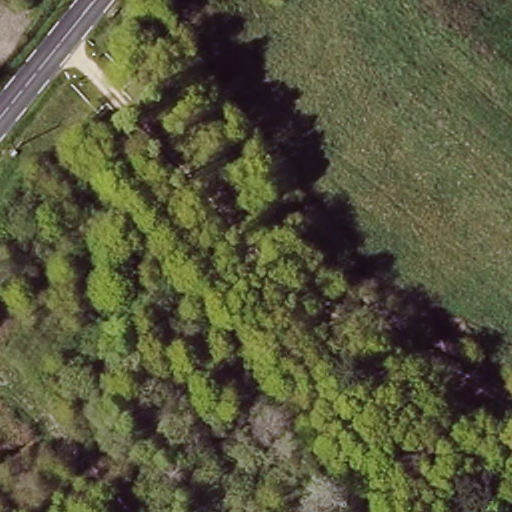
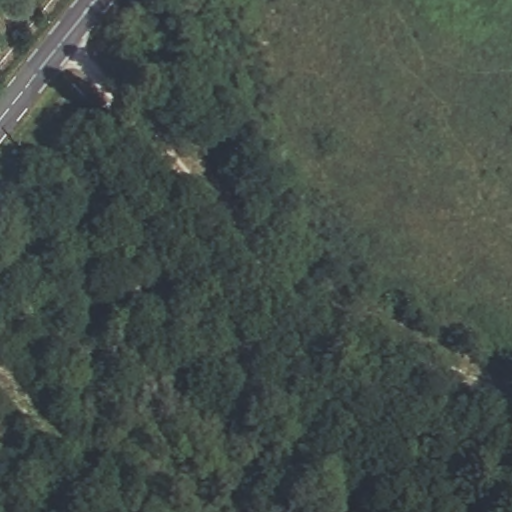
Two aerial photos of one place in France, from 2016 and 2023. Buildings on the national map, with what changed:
[]

